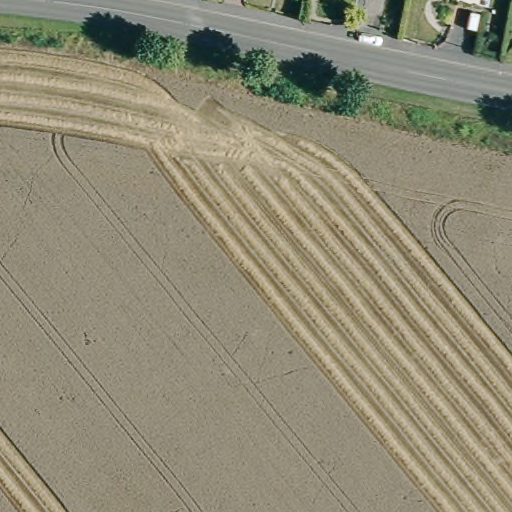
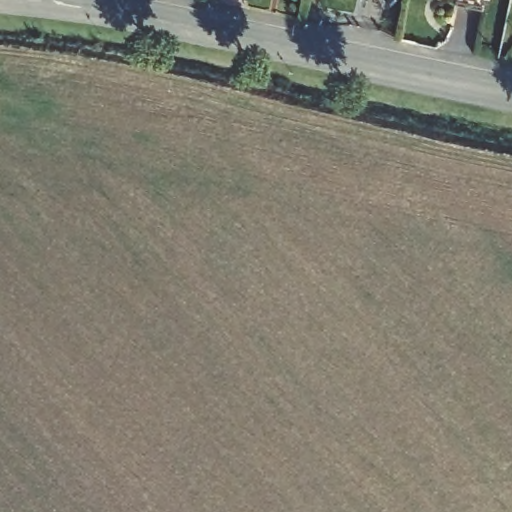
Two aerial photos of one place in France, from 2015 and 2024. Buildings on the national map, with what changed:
[]

